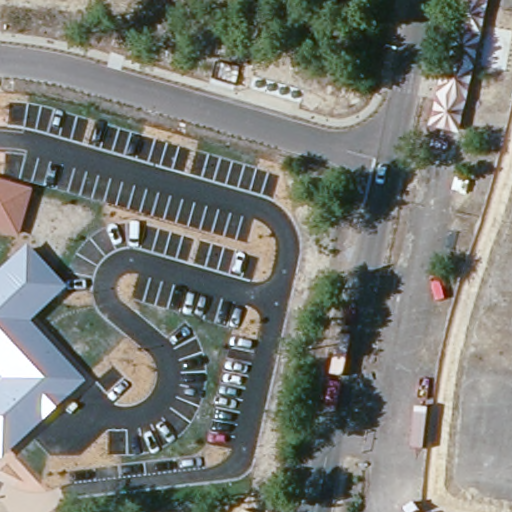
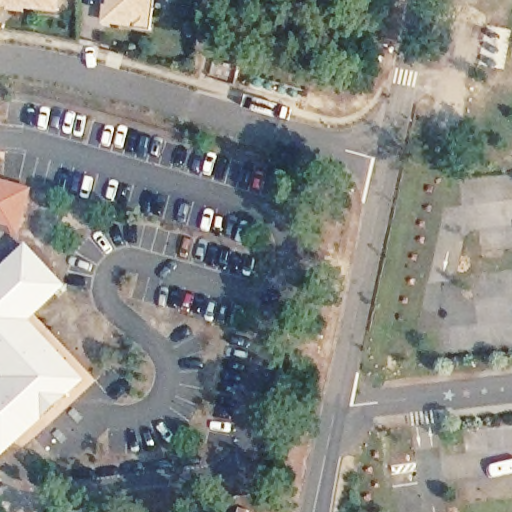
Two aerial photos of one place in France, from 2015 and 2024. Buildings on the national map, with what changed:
new [(24,0),(69,0),(69,4),(24,0)]
new [(104,24),(106,6),(110,6),(111,0),(154,0),(151,30),(104,24)]
unchanged [(19,238),(0,232),(0,179),(33,188),(19,238)]
unchanged [(32,320),(87,381),(3,462),(0,459),(0,381),(2,379),(0,377),(0,270),(27,245),(68,288),(32,320)]

